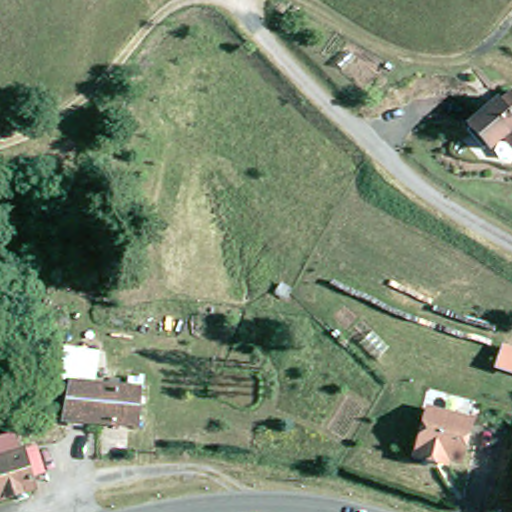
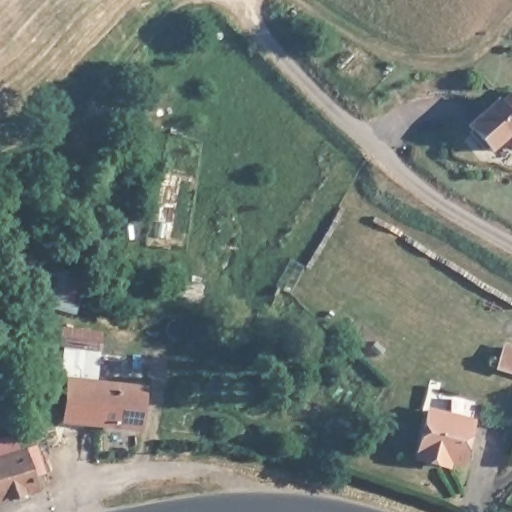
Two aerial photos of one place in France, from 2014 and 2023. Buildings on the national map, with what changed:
unchanged [(512,126),(512,146),(508,149),(498,137),(485,150),(462,125),(485,105),(488,102),(493,97),(496,101),(507,91),(512,96),(512,125),(511,125),(512,126)]
unchanged [(69,427),(69,387),(110,387),(110,372),(127,376),(127,387),(143,387),(143,426),(69,427)]
unchanged [(425,411),(468,422),(458,463),(414,452),(425,411)]
unchanged [(18,435),(22,452),(31,491),(0,499),(0,439),(18,435)]

